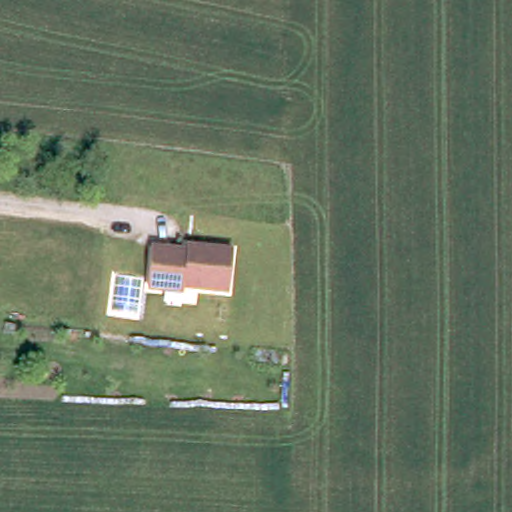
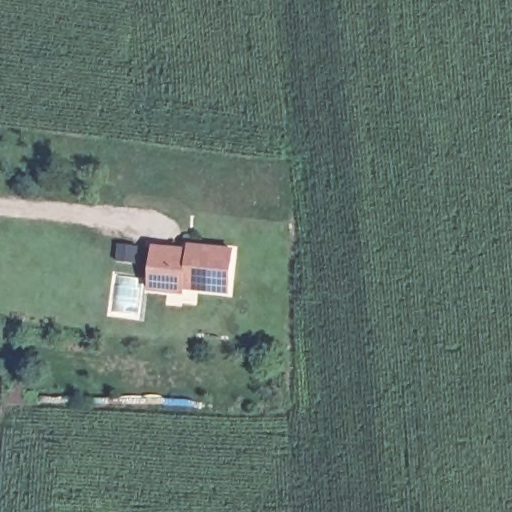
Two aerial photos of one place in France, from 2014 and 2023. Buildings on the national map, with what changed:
unchanged [(187,250),(187,245),(231,250),(226,293),(182,288),(182,293),(147,289),(152,247),(187,250)]

